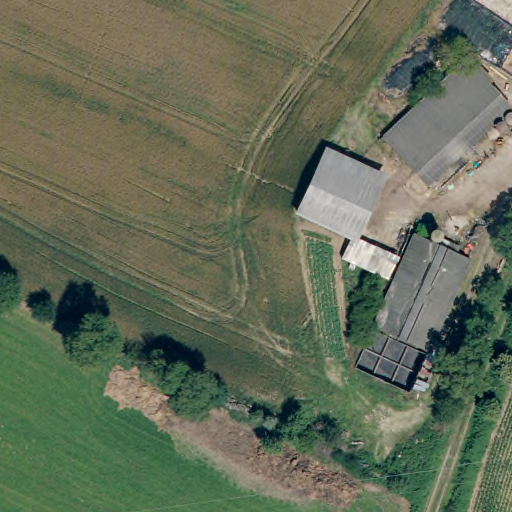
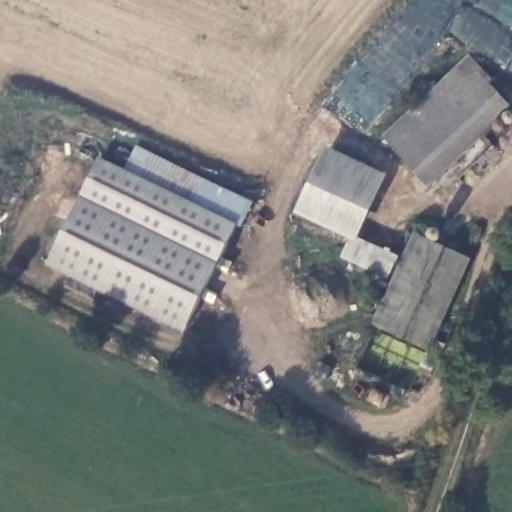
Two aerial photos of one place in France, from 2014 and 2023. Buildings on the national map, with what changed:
unchanged [(512,103),(512,106),(435,183),(389,136),(468,56),(512,103)]
new [(100,160),(237,226),(185,334),(47,267),(100,160)]
unchanged [(358,238),(302,214),(325,161),(381,186),(358,238)]
unchanged [(465,265),(427,356),(372,333),(410,243),(422,248),(465,265)]

